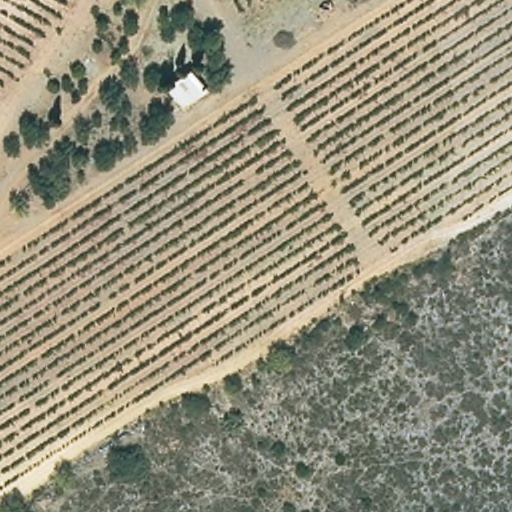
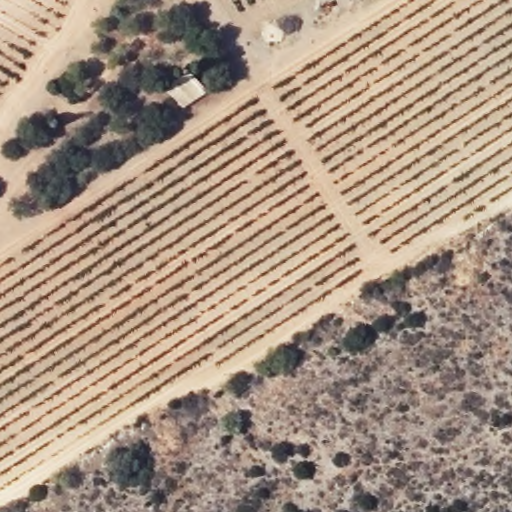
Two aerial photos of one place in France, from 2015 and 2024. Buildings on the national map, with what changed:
unchanged [(208,94),(180,109),(164,85),(190,70),(208,94)]

